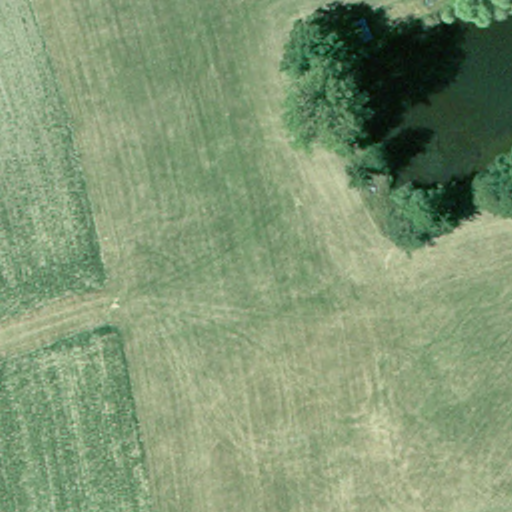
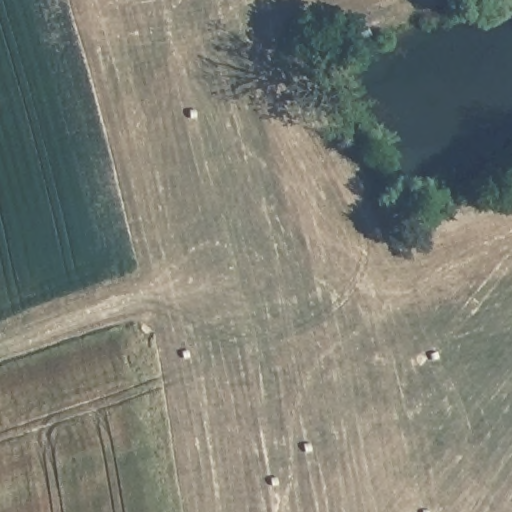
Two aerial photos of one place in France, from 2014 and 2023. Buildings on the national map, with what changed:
unchanged [(325,35),(345,20),(357,36),(336,51),(325,35)]

